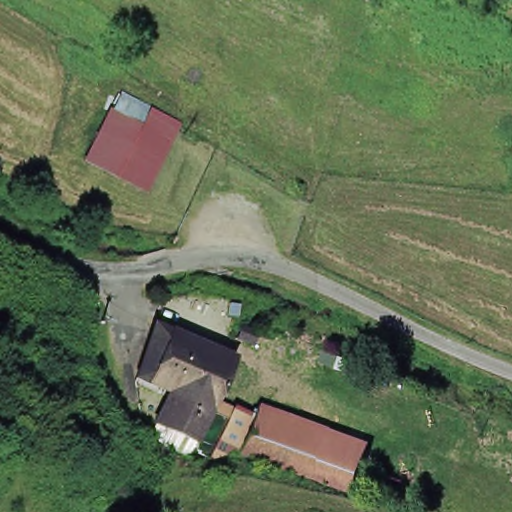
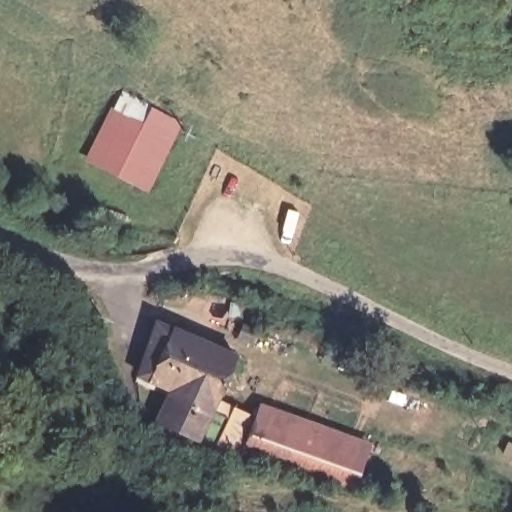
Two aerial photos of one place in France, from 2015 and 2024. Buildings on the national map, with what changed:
unchanged [(144,181),(120,169),(91,154),(117,101),(133,109),(122,130),(135,137),(133,141),(158,152),(144,181)]
unchanged [(135,107),(173,125),(162,149),(135,137),(122,130),(133,109),(135,107)]
unchanged [(148,385),(149,381),(138,376),(152,322),(202,342),(188,377),(173,372),(165,392),(148,385)]
unchanged [(233,355),(212,412),(165,392),(173,372),(188,377),(202,342),(233,355)]
unchanged [(212,412),(207,422),(199,445),(153,426),(165,392),(212,412)]
unchanged [(248,431),(258,406),(366,445),(352,483),(243,444),(248,431)]

